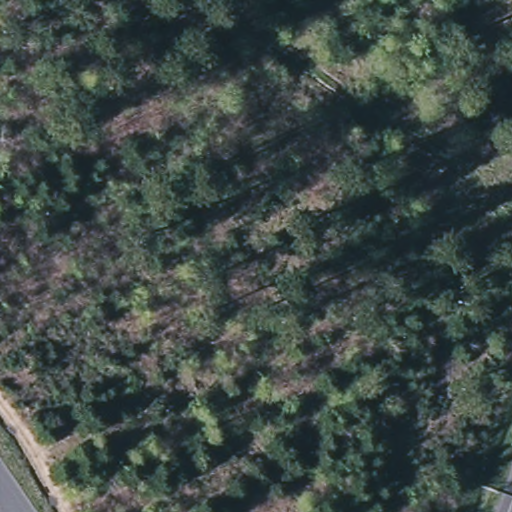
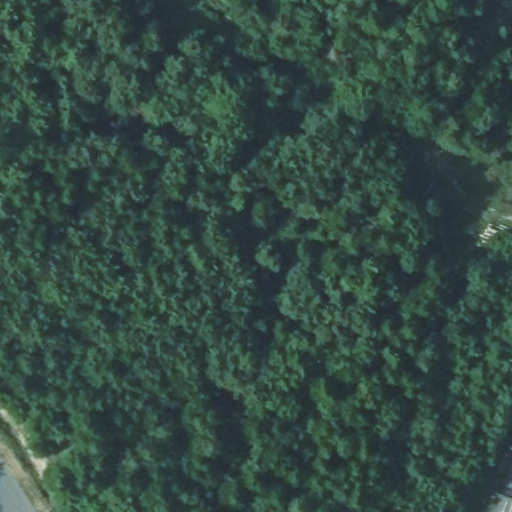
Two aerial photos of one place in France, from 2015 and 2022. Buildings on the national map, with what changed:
[]

